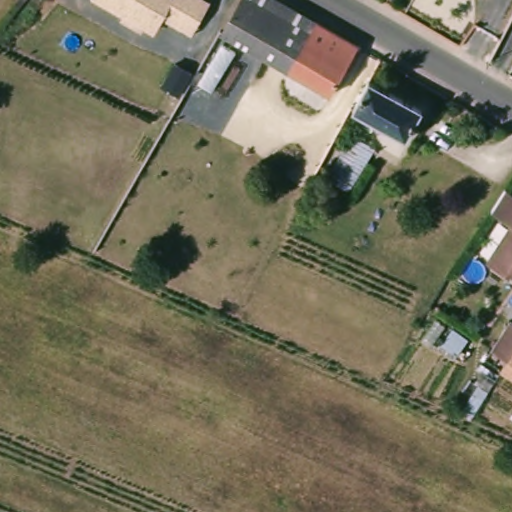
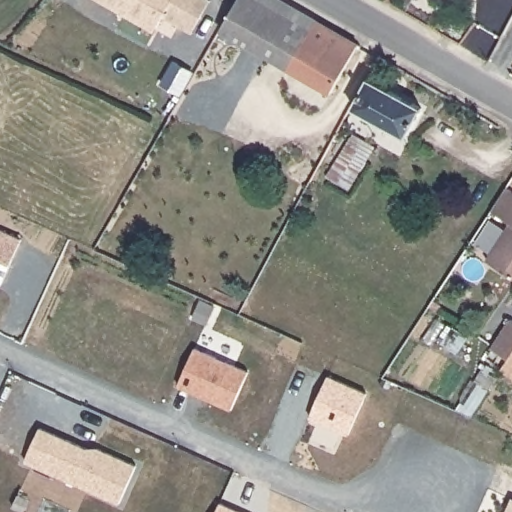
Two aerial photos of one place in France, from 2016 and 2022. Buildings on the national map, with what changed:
unchanged [(101,0),(209,0),(193,30),(180,22),(164,14),(158,25),(155,29),(124,12),(101,0)]
unchanged [(267,0),(280,7),(254,55),(219,35),(237,0),(267,0)]
unchanged [(289,12),(354,49),(328,96),(285,72),(254,55),(280,7),(289,12)]
unchanged [(353,109),(369,77),(423,106),(407,136),(353,109)]
unchanged [(354,193),(330,181),(354,136),(377,148),(354,193)]
unchanged [(512,228),(492,215),(508,191),(512,194),(512,268),(506,277),(488,264),(512,228)]
new [(11,263),(0,259),(0,229),(22,239),(11,263)]
unchanged [(506,277),(512,268),(512,281),(506,277)]
unchanged [(505,361),(489,350),(508,320),(512,324),(512,366),(505,361)]
new [(178,387),(195,348),(249,371),(232,410),(178,387)]
new [(309,419),(329,376),(369,394),(347,436),(309,419)]
new [(25,461),(40,427),(87,448),(98,448),(136,466),(120,505),(25,461)]
new [(512,498),(512,499),(512,512),(506,512),(512,498)]

